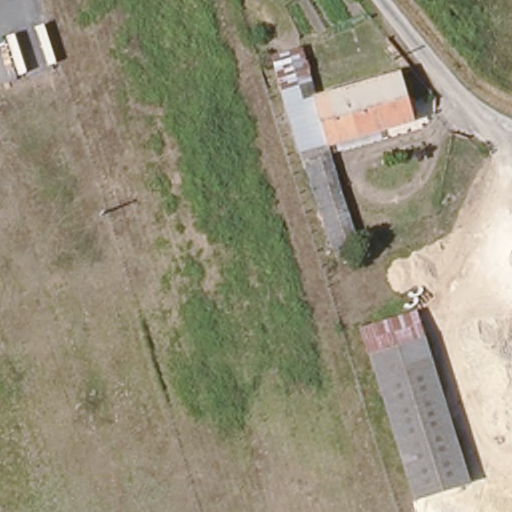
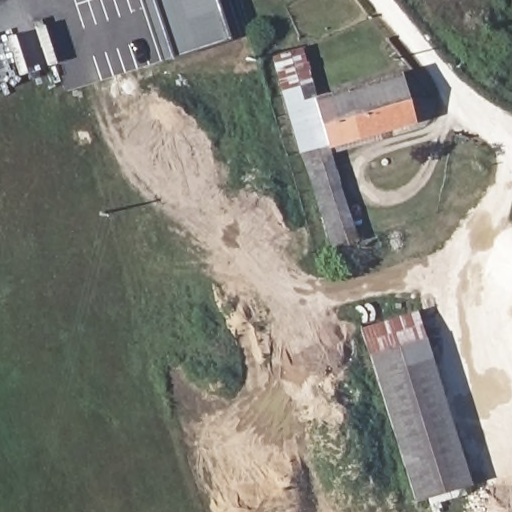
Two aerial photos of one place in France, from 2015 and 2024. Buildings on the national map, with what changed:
new [(228,40),(165,61),(144,0),(215,0),(228,40)]
unchanged [(272,55),(300,47),(312,94),(325,142),(360,239),(335,247),(297,148),(272,55)]
unchanged [(312,94),(405,72),(419,121),(325,142),(312,94)]
unchanged [(367,356),(360,330),(414,313),(423,339),(367,356)]
unchanged [(470,481),(415,500),(367,356),(423,339),(470,481)]

